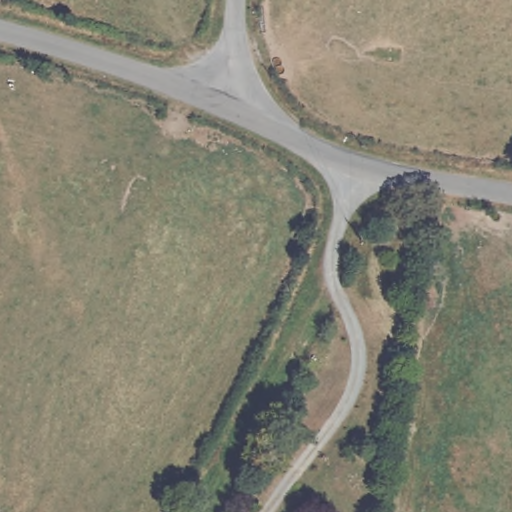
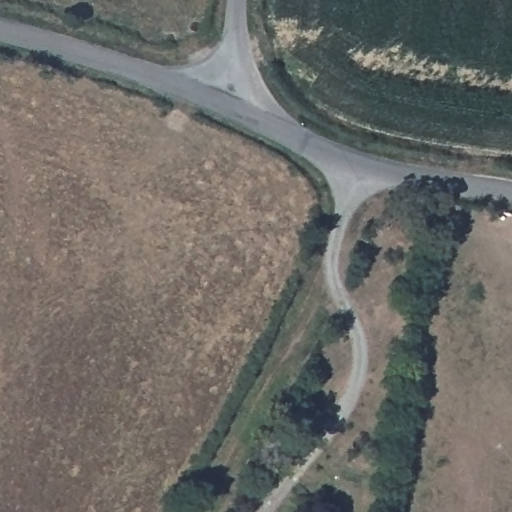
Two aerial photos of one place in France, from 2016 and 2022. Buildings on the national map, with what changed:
[]

